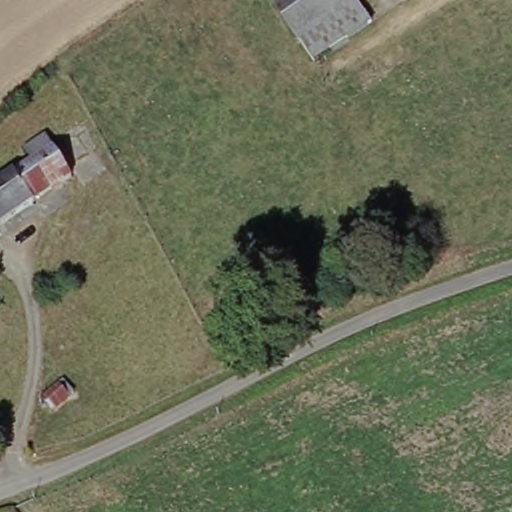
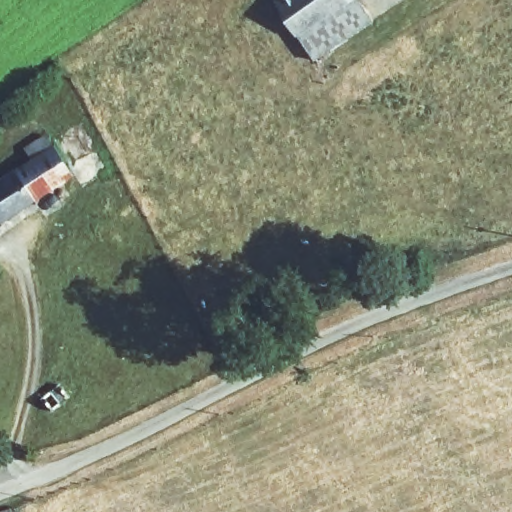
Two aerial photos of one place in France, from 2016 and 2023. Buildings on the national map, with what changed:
unchanged [(315,62),(277,5),(284,0),(357,0),(373,24),(315,62)]
unchanged [(37,160),(29,150),(52,136),(78,177),(0,230),(0,183),(3,181),(37,160)]
unchanged [(42,400),(59,385),(65,380),(75,392),(69,397),(51,412),(42,400)]

